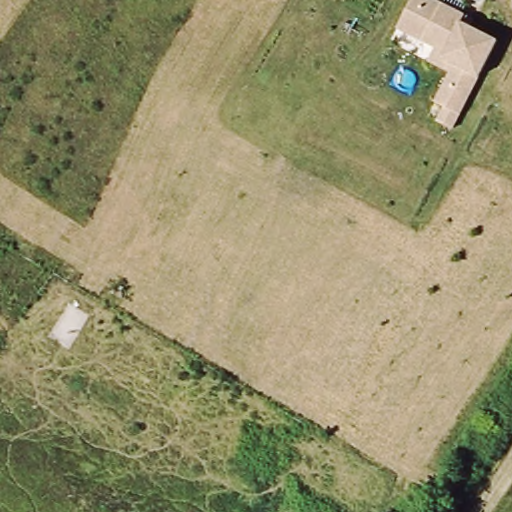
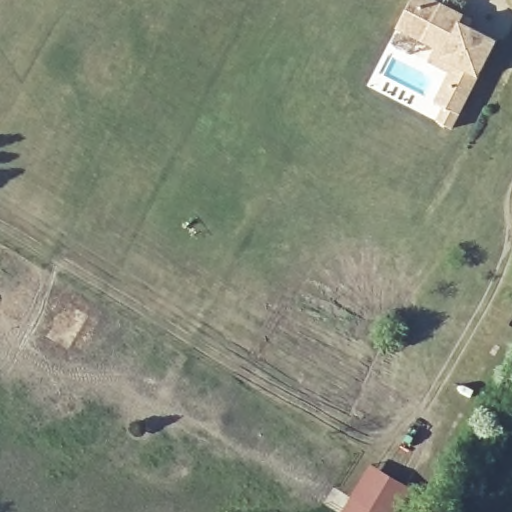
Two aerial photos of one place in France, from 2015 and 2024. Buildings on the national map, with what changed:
unchanged [(435,101),(450,71),(427,60),(433,49),(396,28),(409,0),(437,0),(465,14),(461,21),(497,39),(476,79),(450,129),(435,120),(442,106),(435,101)]
new [(369,462),(413,487),(398,512),(339,512),(369,462)]

